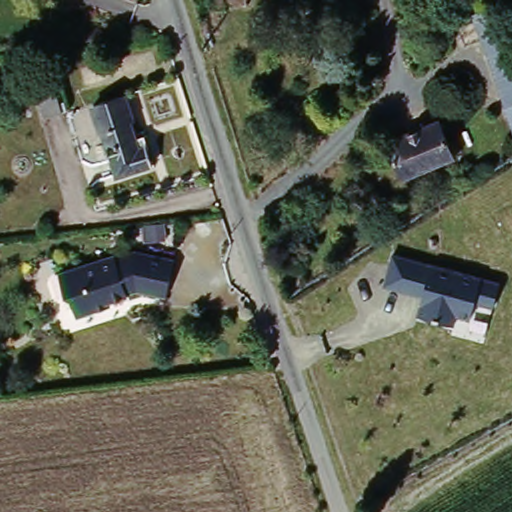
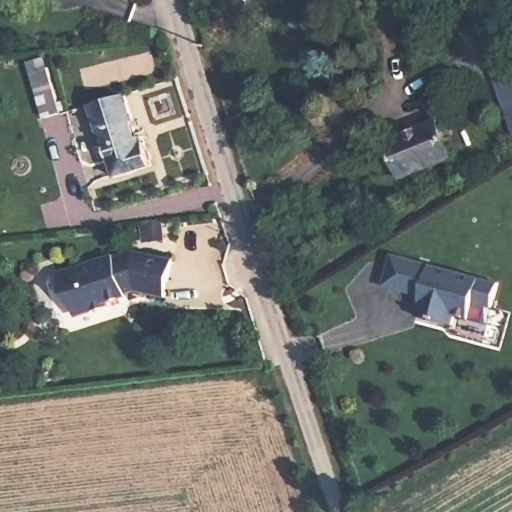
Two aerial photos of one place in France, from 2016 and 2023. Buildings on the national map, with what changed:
unchanged [(215,0),(239,0),(217,7),(215,0)]
unchanged [(466,19),(464,12),(483,6),(485,12),(495,44),(512,97),(512,100),(494,106),(478,55),(466,19)]
unchanged [(44,75),(61,70),(75,116),(57,122),(44,75)]
unchanged [(125,100),(134,124),(130,125),(135,145),(145,142),(153,169),(115,181),(92,111),(125,100)]
unchanged [(438,121),(453,160),(402,185),(384,145),(438,121)]
unchanged [(95,315),(80,319),(73,301),(70,299),(60,275),(117,256),(120,260),(138,252),(175,257),(170,295),(142,294),(109,305),(111,311),(95,315)]
unchanged [(496,282),(490,305),(477,302),(471,319),(458,317),(454,327),(417,316),(421,295),(384,285),(393,252),(496,282)]

